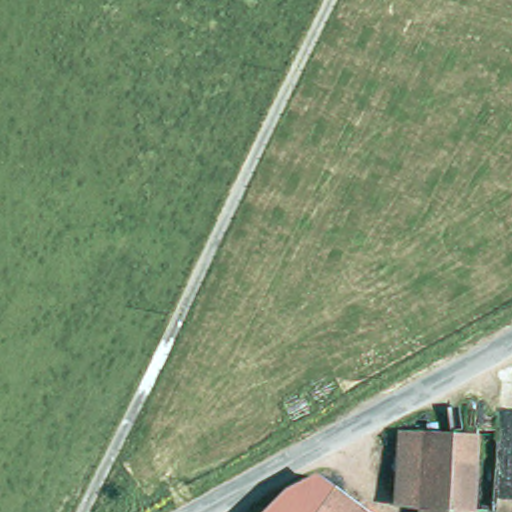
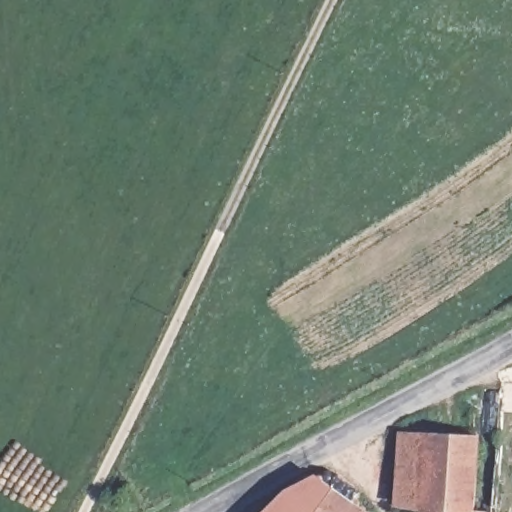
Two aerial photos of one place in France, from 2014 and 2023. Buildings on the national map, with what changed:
unchanged [(428,437),(464,439),(465,416),(482,417),(480,440),(475,512),(422,512),(422,508),(428,437)]
unchanged [(399,506),(406,435),(428,437),(422,508),(399,506)]
unchanged [(282,512),(278,509),(293,492),(318,479),(364,512),(282,512)]
unchanged [(282,512),(276,512),(278,509),(282,512)]

